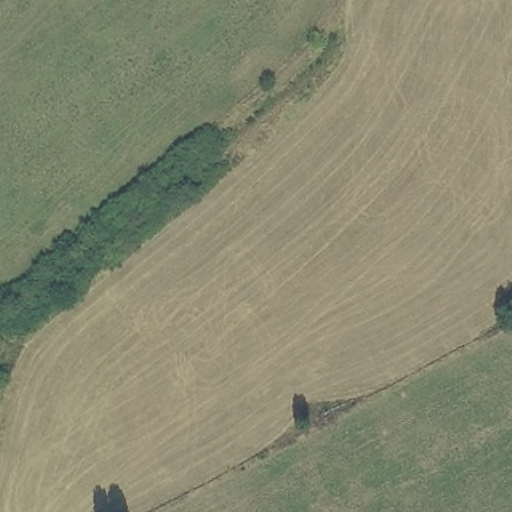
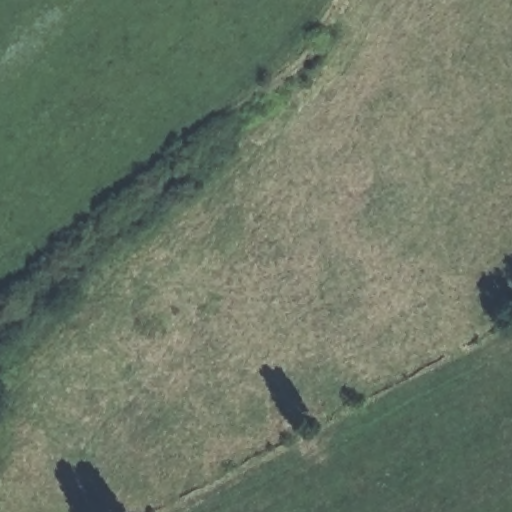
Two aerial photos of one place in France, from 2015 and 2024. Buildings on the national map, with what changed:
[]

